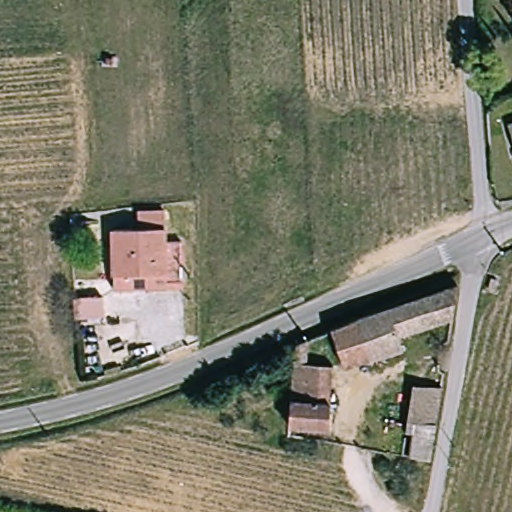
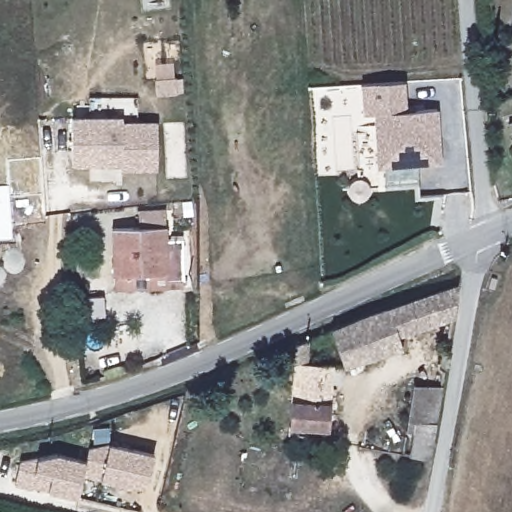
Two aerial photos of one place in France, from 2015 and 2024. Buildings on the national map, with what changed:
new [(417,117),(427,117),(448,116),(452,170),(390,174),(386,121),(375,122),(373,91),(415,88),(417,117)]
new [(157,170),(122,170),(122,163),(75,162),(74,117),(120,117),(121,122),(156,122),(157,170)]
unchanged [(114,227),(140,226),(138,212),(168,211),(170,232),(114,240),(114,227)]
unchanged [(118,292),(117,276),(114,240),(170,232),(170,240),(182,240),(183,282),(167,282),(166,288),(118,292)]
unchanged [(457,286),(451,324),(404,333),(394,303),(457,286)]
unchanged [(78,296),(102,297),(105,320),(79,322),(78,296)]
unchanged [(394,303),(404,333),(338,352),(331,322),(394,303)]
unchanged [(345,373),(338,352),(404,333),(409,354),(360,369),(345,373)]
unchanged [(336,375),(331,400),(291,392),(294,367),(336,375)]
unchanged [(400,452),(410,384),(441,390),(430,460),(400,452)]
unchanged [(331,400),(327,430),(287,422),(291,392),(331,400)]
new [(38,458),(58,453),(85,460),(90,448),(110,443),(155,454),(149,477),(146,491),(131,487),(100,478),(84,474),(77,498),(48,490),(32,487),(31,489),(15,486),(20,460),(38,458)]

